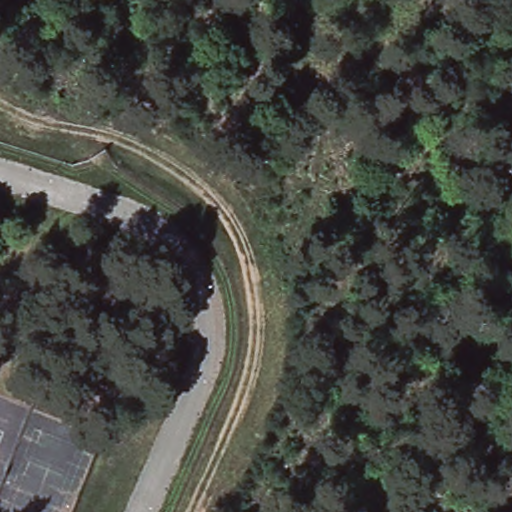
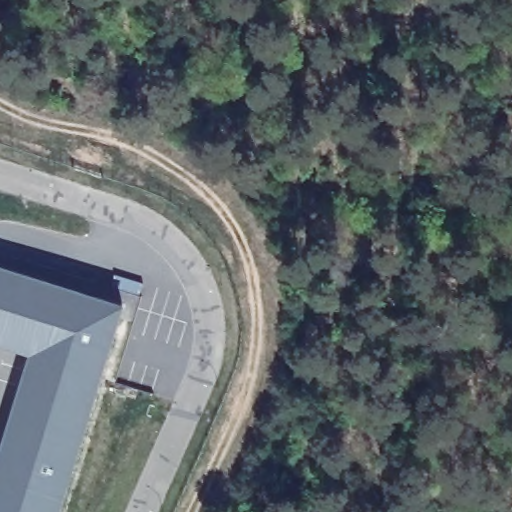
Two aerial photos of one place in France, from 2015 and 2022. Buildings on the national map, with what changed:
new [(0,346),(0,268),(125,306),(60,512),(0,512),(0,449),(28,355),(0,346)]

